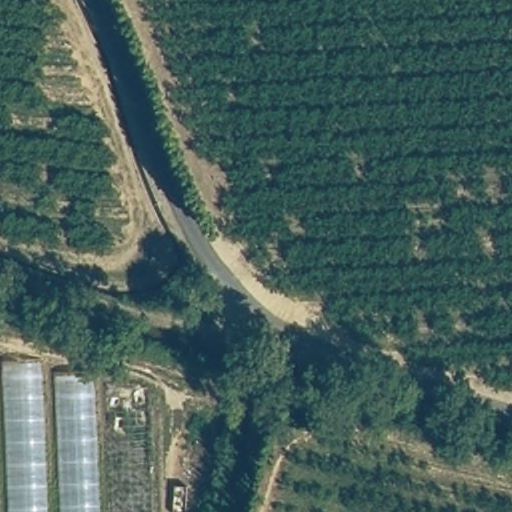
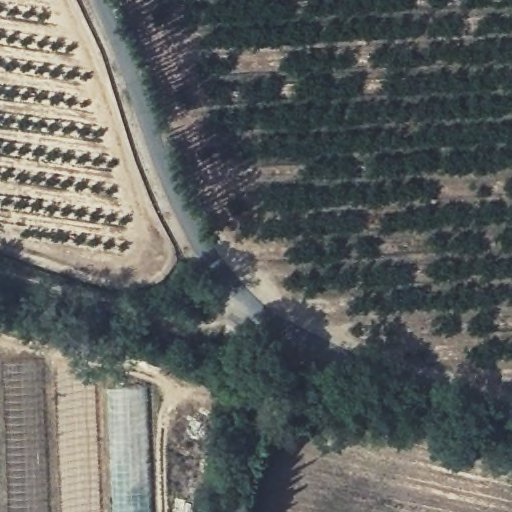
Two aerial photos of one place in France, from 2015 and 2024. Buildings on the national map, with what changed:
unchanged [(152,512),(0,512),(0,353),(151,392),(152,512)]

